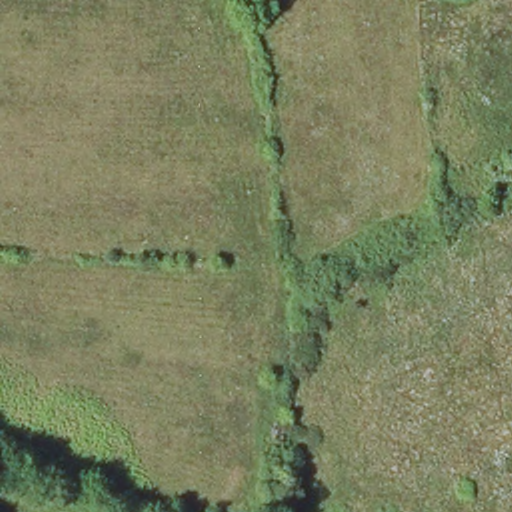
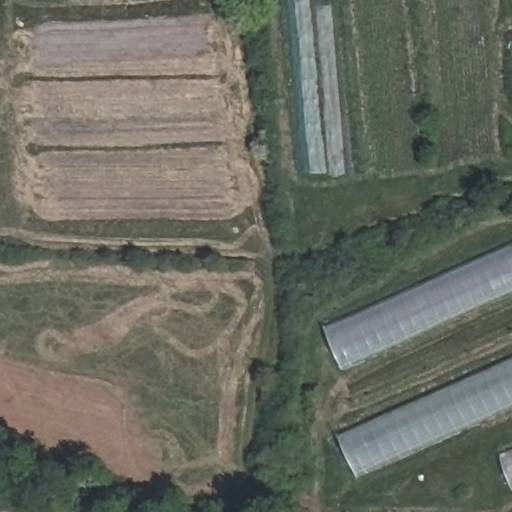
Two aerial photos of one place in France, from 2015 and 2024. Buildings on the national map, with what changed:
new [(512,247),(512,292),(343,368),(327,329),(512,247)]
new [(358,477),(340,437),(512,361),(512,408),(358,477)]
new [(512,453),(512,484),(502,457),(512,453)]

